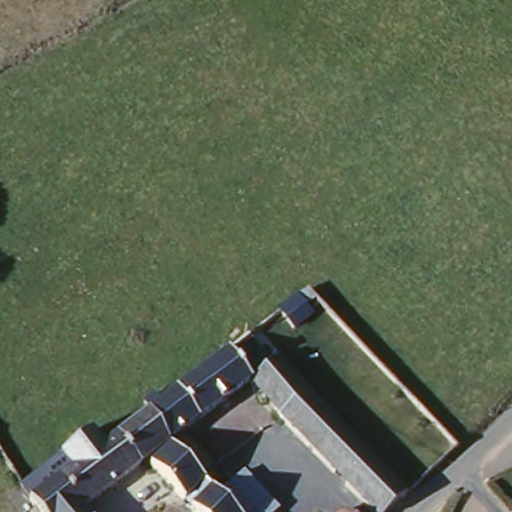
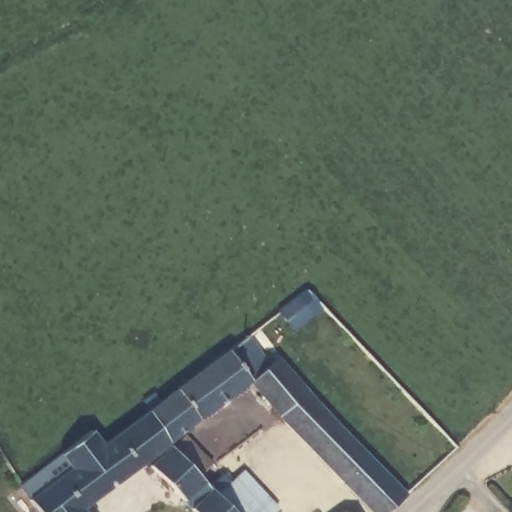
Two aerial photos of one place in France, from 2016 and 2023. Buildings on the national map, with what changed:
unchanged [(318,310),(322,316),(303,329),(291,309),(323,286),(333,299),(318,310)]
unchanged [(280,512),(192,512),(149,462),(87,508),(90,512),(40,512),(20,487),(63,457),(61,454),(93,431),(103,446),(105,445),(230,352),(244,342),(264,368),(255,375),(253,383),(172,445),(215,493),(253,463),(290,503),(280,512)]
unchanged [(288,413),(255,375),(269,364),(285,353),(316,390),(288,413)]
unchanged [(383,512),(372,512),(288,413),(316,390),(404,493),(383,512)]

